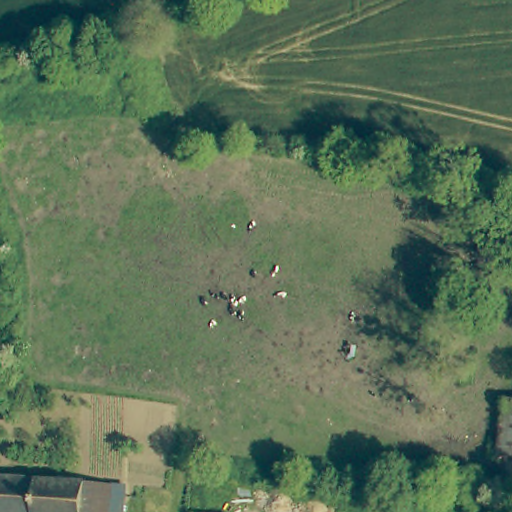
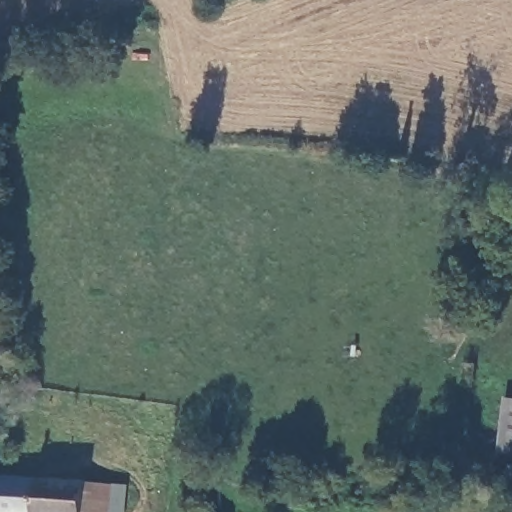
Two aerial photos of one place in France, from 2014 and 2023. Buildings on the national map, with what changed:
unchanged [(499,449),(505,396),(512,397),(512,451),(499,449)]
unchanged [(81,480),(80,512),(0,512),(0,475),(61,478),(81,480)]
unchanged [(100,481),(114,482),(113,512),(80,512),(81,480),(100,481)]

